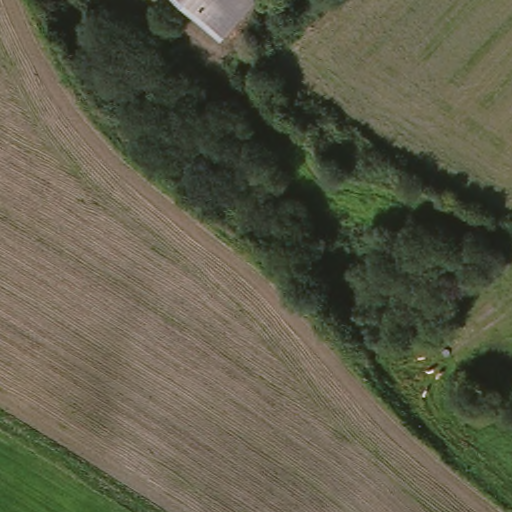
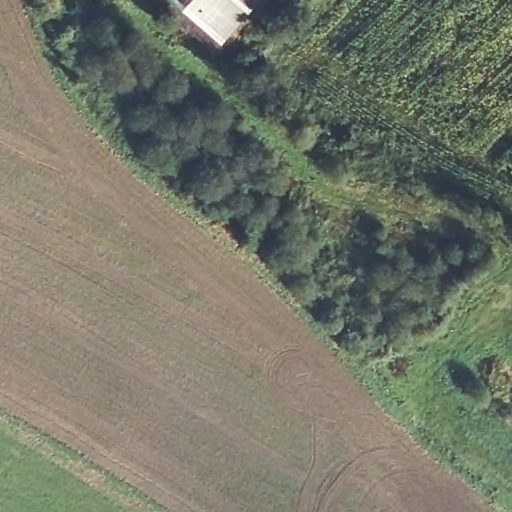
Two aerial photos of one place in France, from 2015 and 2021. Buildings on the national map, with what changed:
unchanged [(213,42),(166,0),(252,0),(213,42)]

